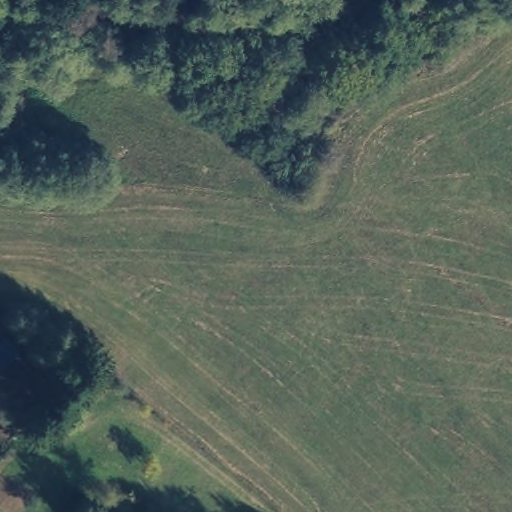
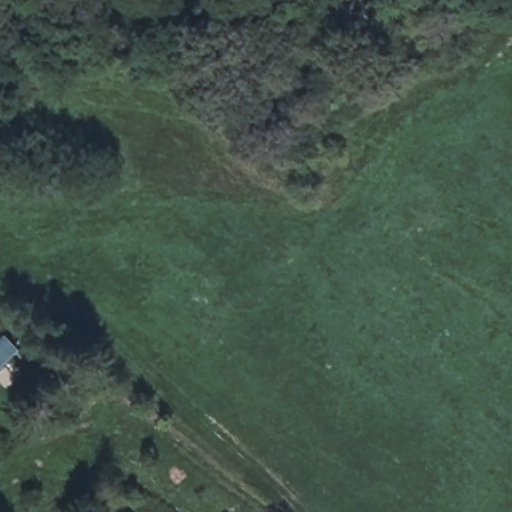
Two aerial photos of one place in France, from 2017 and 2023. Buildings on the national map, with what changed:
unchanged [(14,350),(0,365),(0,339),(2,336),(14,350)]

